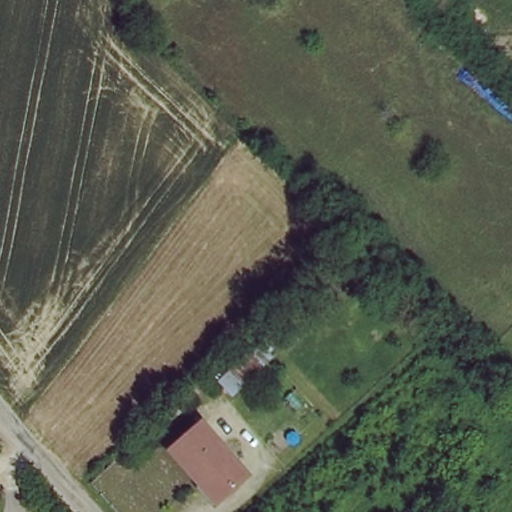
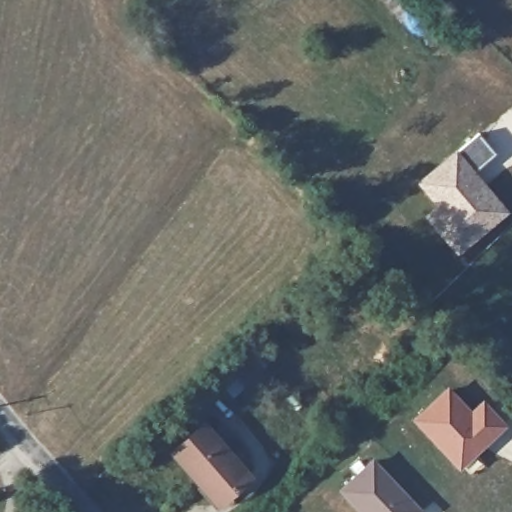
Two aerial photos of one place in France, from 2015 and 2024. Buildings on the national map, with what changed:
new [(478,132),(496,154),(477,171),(510,212),(458,257),(422,216),(433,205),(414,182),(478,132)]
new [(447,386),(471,408),(482,398),(508,425),(460,472),(411,420),(447,386)]
unchanged [(221,505),(176,456),(206,430),(248,475),(221,505)]
new [(421,508),(417,512),(358,512),(337,491),(371,457),(421,508)]

